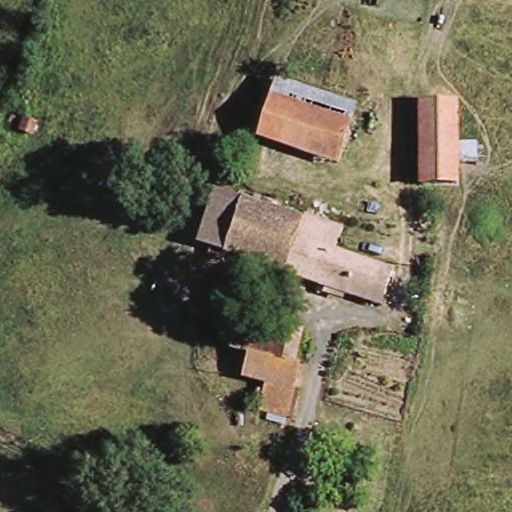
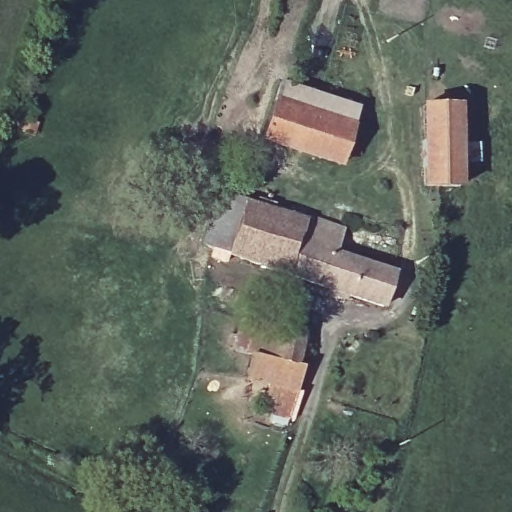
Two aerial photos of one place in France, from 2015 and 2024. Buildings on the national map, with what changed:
unchanged [(357,106),(338,162),(262,136),(281,81),(357,106)]
unchanged [(458,184),(423,183),(422,106),(460,108),(458,184)]
unchanged [(382,269),(368,305),(197,245),(217,190),(336,230),(331,251),(382,269)]
unchanged [(237,325),(302,339),(295,372),(299,373),(288,423),(255,416),(261,386),(242,383),(246,357),(231,353),(237,325)]

